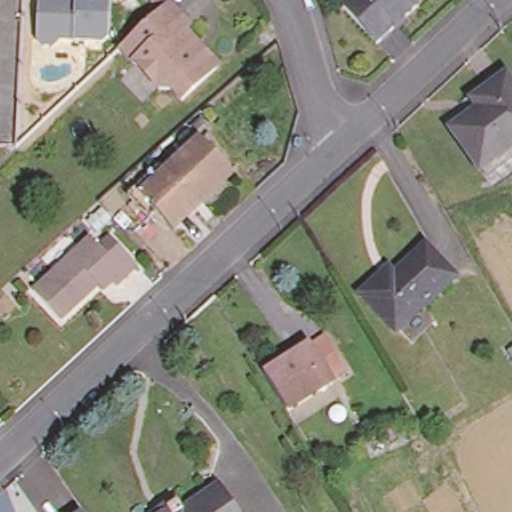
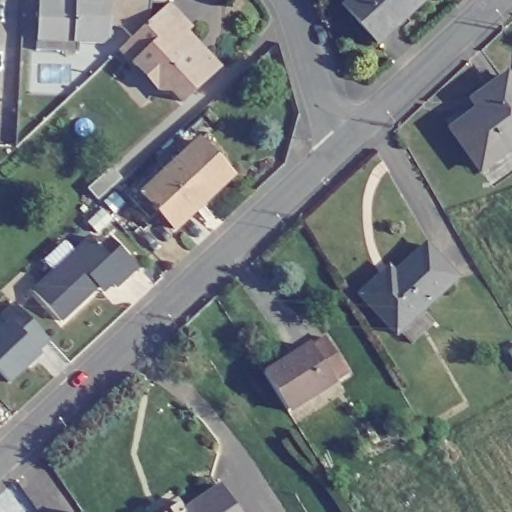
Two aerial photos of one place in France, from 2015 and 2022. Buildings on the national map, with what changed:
unchanged [(111,28),(105,34),(92,34),(73,34),(59,33),(55,39),(45,38),(40,29),(40,0),(112,0),(111,28)]
unchanged [(153,0),(169,0),(168,7),(153,7),(153,0)]
unchanged [(376,47),(340,11),(352,0),(426,0),(405,21),(392,32),(376,47)]
unchanged [(174,94),(160,92),(160,80),(150,69),(137,68),(123,52),(152,25),(169,9),(170,8),(191,30),(187,35),(221,70),(185,104),(174,94)]
unchanged [(505,80),(512,90),(512,146),(479,170),(451,132),(475,114),(470,106),(505,80)]
unchanged [(142,192),(201,142),(232,178),(172,228),(142,192)]
unchanged [(89,239),(98,249),(110,239),(116,247),(48,307),(32,290),(89,239)]
unchanged [(136,268),(113,288),(105,279),(59,320),(48,307),(116,247),(136,268)]
unchanged [(380,278),(386,284),(426,249),(456,282),(395,336),(360,296),(380,278)]
new [(51,339),(38,349),(43,353),(11,383),(0,370),(0,314),(15,301),(51,339)]
unchanged [(293,362),(293,359),(311,348),(325,340),(345,375),(286,414),(265,380),(293,362)]
unchanged [(231,512),(185,512),(215,491),(231,512)]
unchanged [(183,512),(164,512),(176,503),(183,512)]

